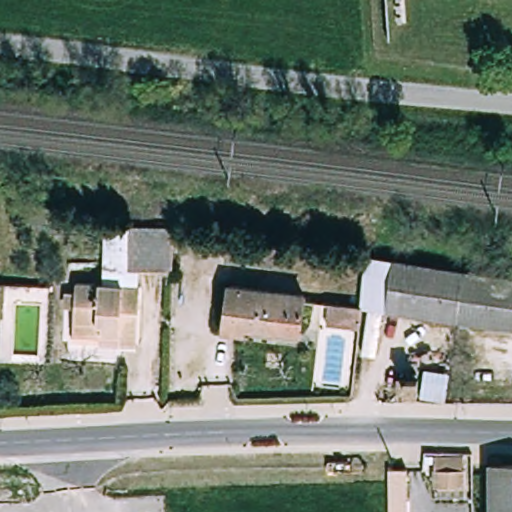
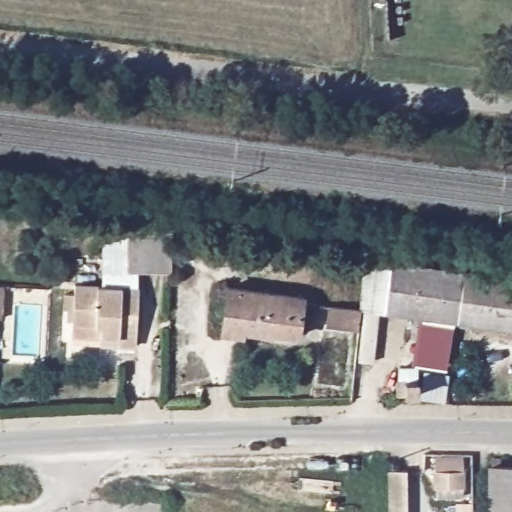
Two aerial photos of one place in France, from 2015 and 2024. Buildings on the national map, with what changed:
unchanged [(99,226),(130,230),(127,264),(136,264),(136,288),(98,286),(99,226)]
unchanged [(136,264),(127,264),(130,230),(168,232),(167,264),(136,264)]
unchanged [(225,240),(271,246),(268,268),(222,262),(225,240)]
unchanged [(361,304),(359,304),(365,253),(391,257),(384,307),(361,304)]
unchanged [(464,268),(457,318),(384,307),(391,257),(464,268)]
unchanged [(512,275),(512,326),(457,318),(464,268),(512,275)]
unchanged [(0,285),(3,285),(2,319),(0,319),(0,285)]
unchanged [(133,347),(68,343),(71,285),(98,286),(136,288),(133,347)]
unchanged [(299,337),(244,329),(244,336),(221,333),(227,287),(304,297),(299,337)]
unchanged [(325,322),(327,300),(359,304),(359,326),(325,322)]
new [(457,318),(446,369),(411,363),(420,312),(457,318)]
unchanged [(437,488),(437,477),(434,477),(434,460),(464,460),(464,477),(464,487),(437,488)]
unchanged [(512,461),(512,512),(487,512),(487,461),(512,461)]

